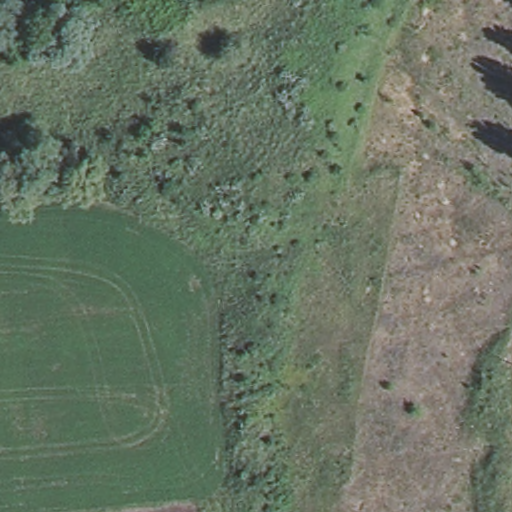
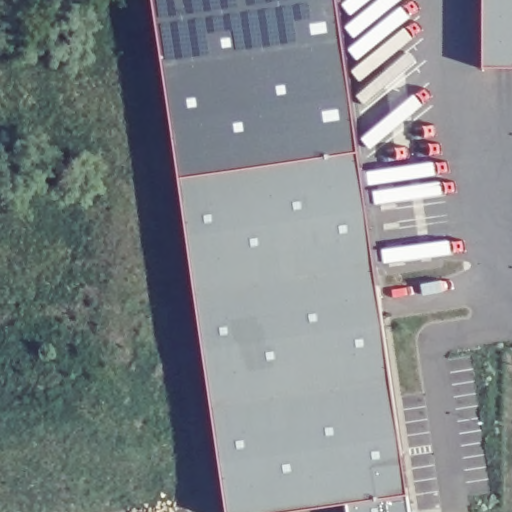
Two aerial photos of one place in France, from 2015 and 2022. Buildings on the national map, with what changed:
new [(348,507),(314,512),(228,512),(151,0),(332,0),(411,512),(349,512),(348,507)]
new [(485,0),(512,0),(512,71),(485,71),(485,0)]

